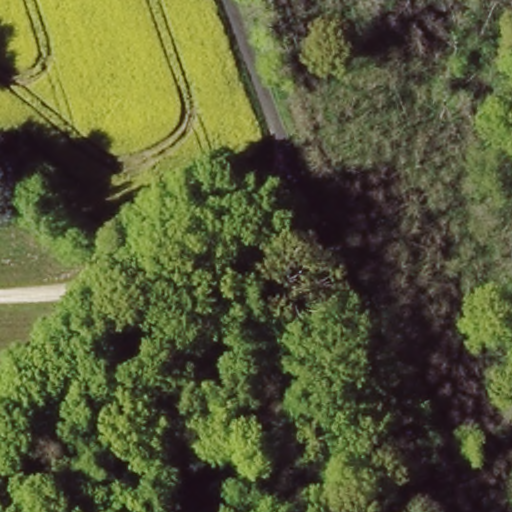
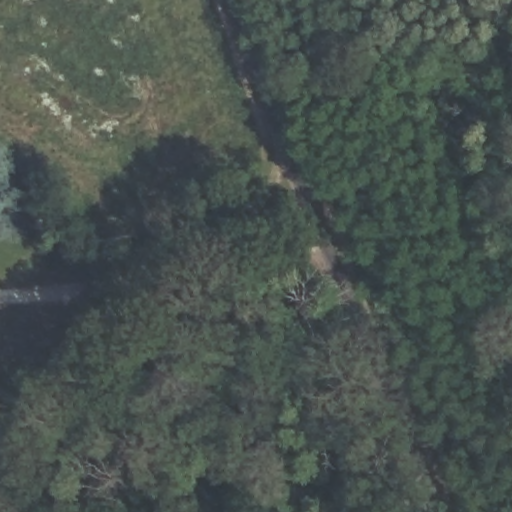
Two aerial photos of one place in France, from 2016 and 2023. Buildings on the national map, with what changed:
[]

